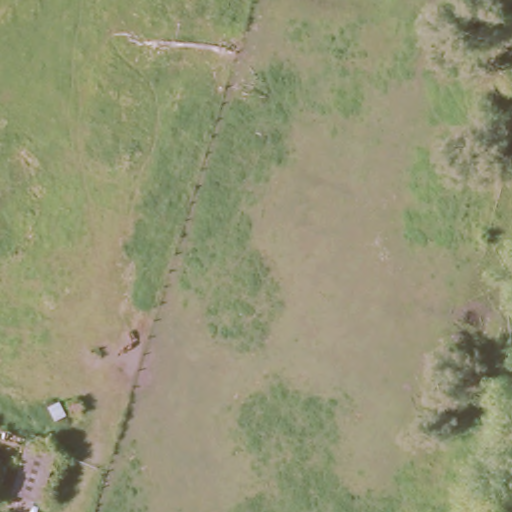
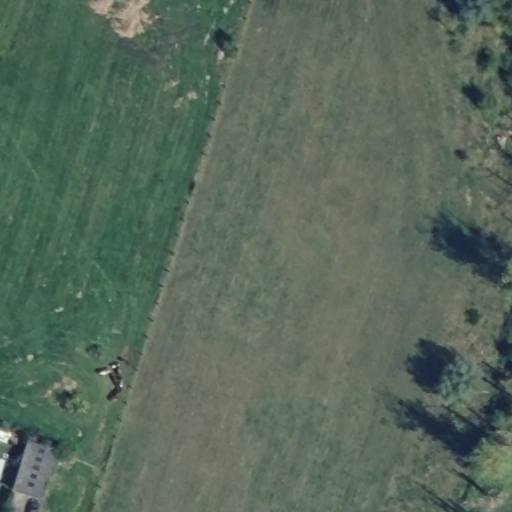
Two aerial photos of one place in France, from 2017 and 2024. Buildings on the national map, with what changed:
unchanged [(58,450),(42,501),(13,492),(29,440),(58,450)]

